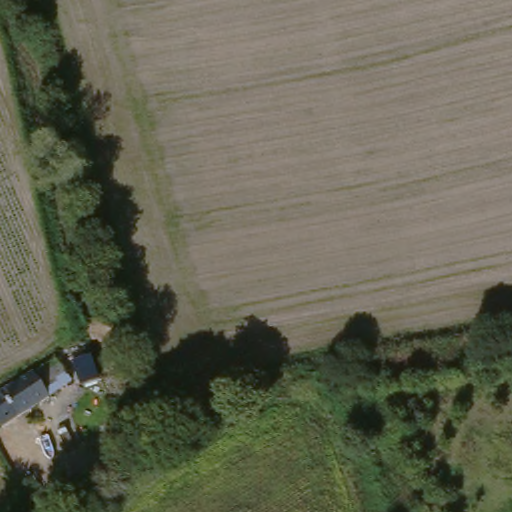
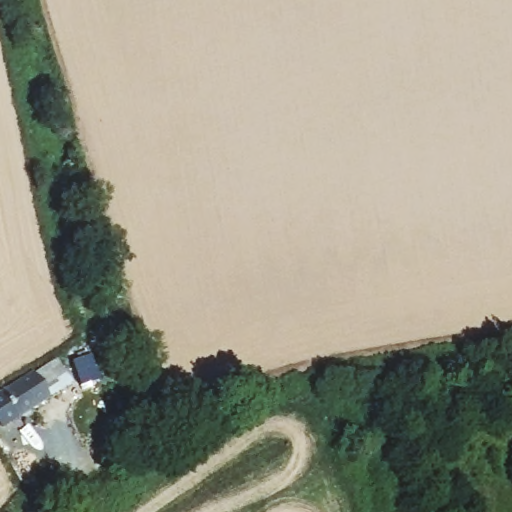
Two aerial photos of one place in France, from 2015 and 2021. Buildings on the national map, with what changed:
unchanged [(64,388),(43,400),(43,403),(0,429),(0,391),(46,362),(64,388)]
unchanged [(82,362),(90,386),(73,391),(65,368),(82,362)]

